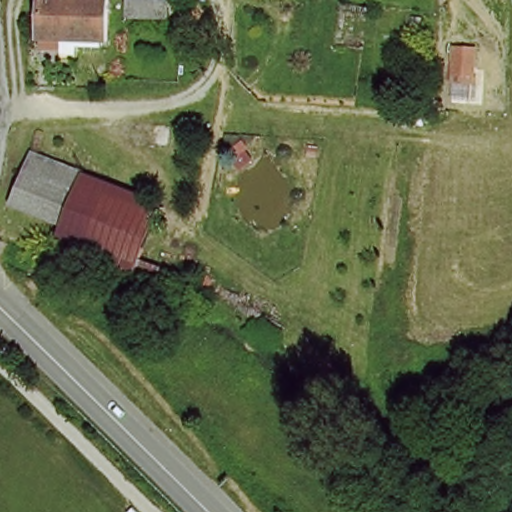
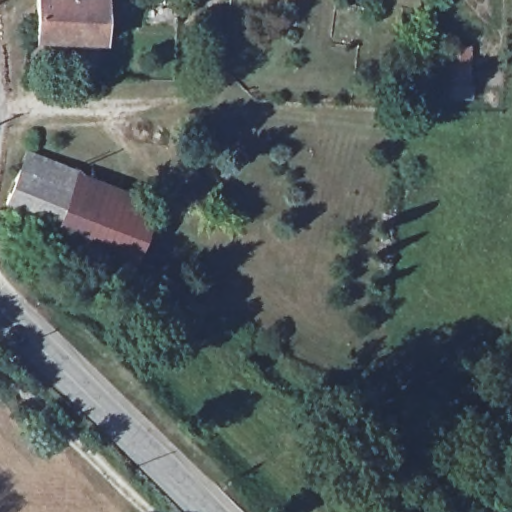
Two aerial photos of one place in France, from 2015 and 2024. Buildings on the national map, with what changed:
unchanged [(101,24),(86,23),(84,35),(54,33),(55,20),(32,17),(34,0),(102,0),(101,24)]
unchanged [(472,48),(473,76),(447,77),(447,49),(472,48)]
unchanged [(151,196),(137,275),(83,268),(68,255),(55,241),(54,227),(4,209),(28,149),(151,196)]

